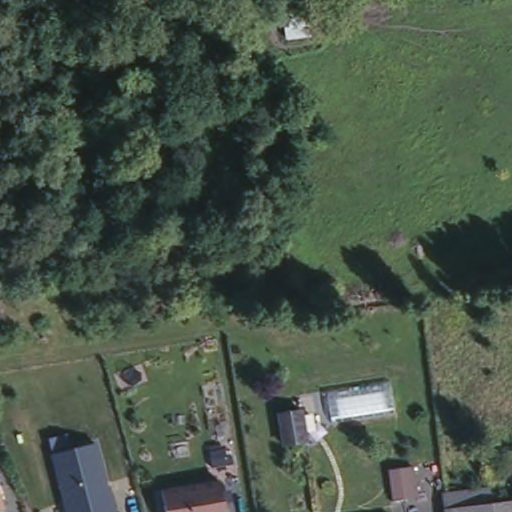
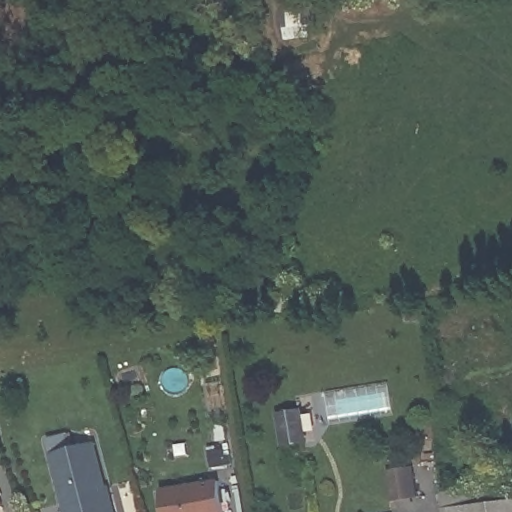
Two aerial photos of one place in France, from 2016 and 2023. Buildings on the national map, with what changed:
unchanged [(277,416),(296,414),(298,446),(280,447),(277,416)]
unchanged [(95,442),(106,486),(111,484),(118,512),(64,512),(50,454),(95,442)]
unchanged [(417,499),(393,502),(389,470),(411,467),(417,499)]
unchanged [(220,481),(224,512),(164,512),(161,491),(220,481)]
unchanged [(496,502),(512,500),(512,512),(441,512),(438,494),(492,487),(496,502)]
unchanged [(0,511),(0,499),(5,510),(0,511)]

